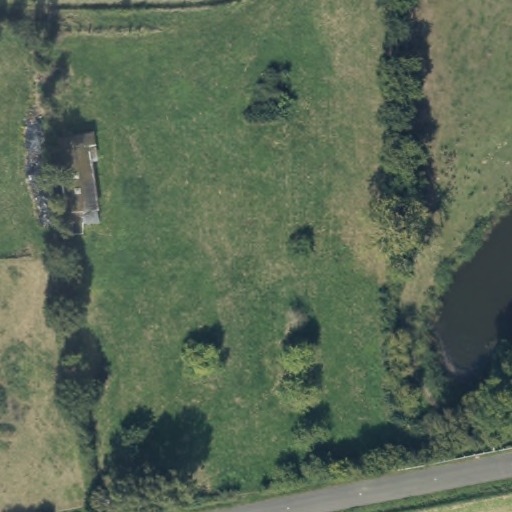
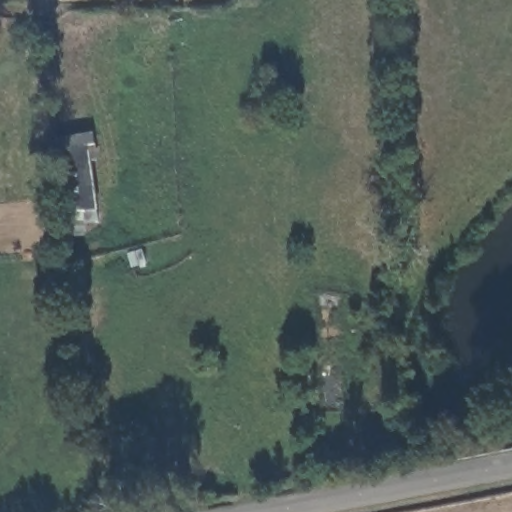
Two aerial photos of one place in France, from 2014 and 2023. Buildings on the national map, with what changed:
[]

